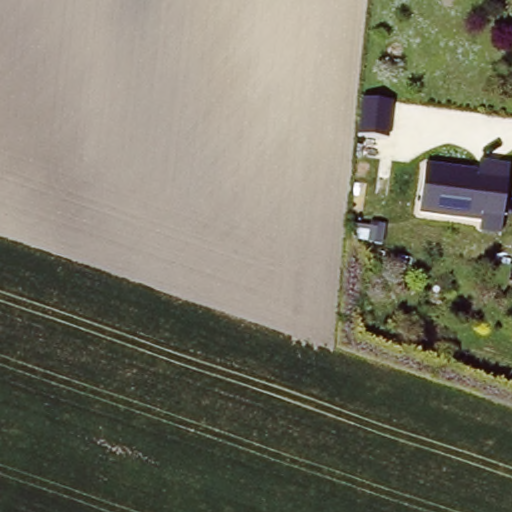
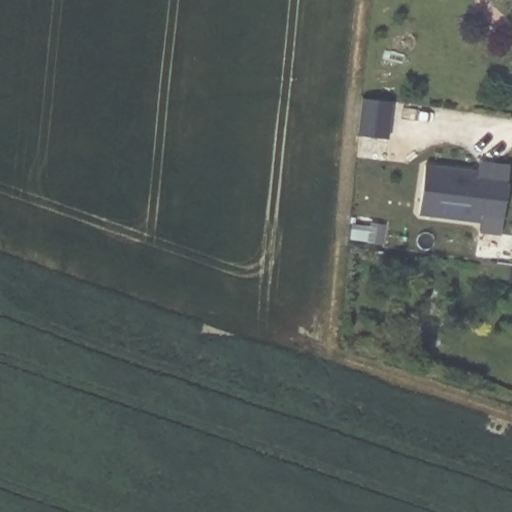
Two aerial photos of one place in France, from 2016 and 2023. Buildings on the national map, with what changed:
unchanged [(510,176),(501,232),(477,231),(480,219),(415,214),(424,164),(510,176)]

